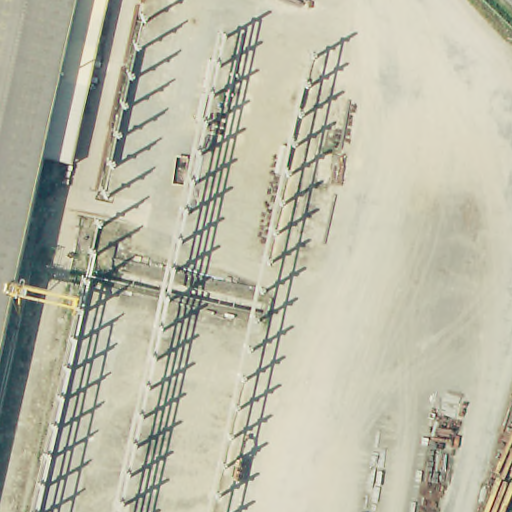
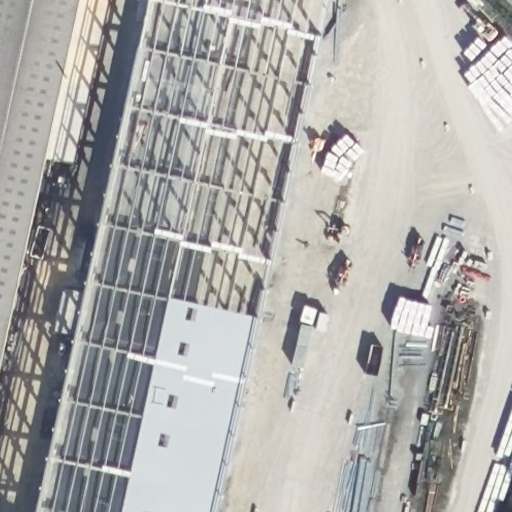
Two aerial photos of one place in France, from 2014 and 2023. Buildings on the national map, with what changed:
unchanged [(55,136),(54,142),(50,159),(0,387),(0,0),(85,0),(55,136)]
unchanged [(83,142),(78,165),(50,159),(54,142),(55,136),(85,0),(114,0),(83,142)]
new [(38,512),(142,50),(307,86),(215,512),(38,512)]

